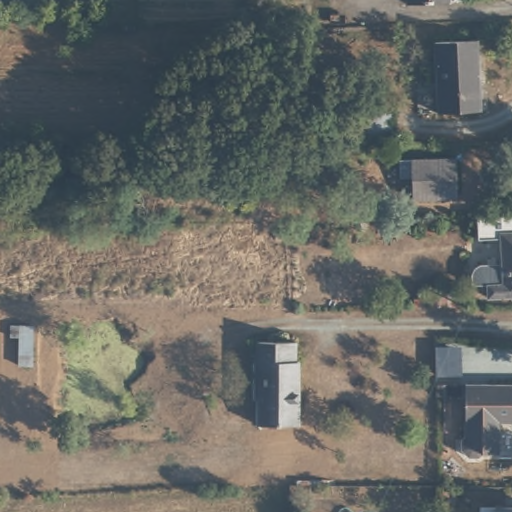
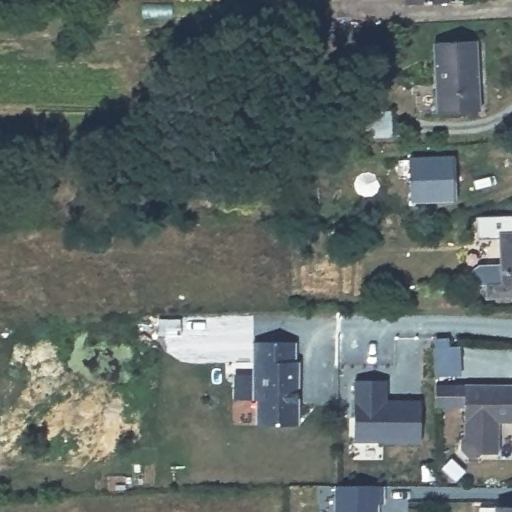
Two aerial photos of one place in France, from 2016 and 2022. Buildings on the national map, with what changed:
unchanged [(452,2),(410,3),(409,0),(452,0),(452,2)]
unchanged [(260,24),(277,24),(276,27),(291,27),(291,33),(260,34),(260,24)]
unchanged [(477,109),(437,111),(434,42),(475,42),(477,109)]
unchanged [(342,140),(342,115),(387,113),(388,138),(342,140)]
unchanged [(288,152),(288,161),(281,161),(281,151),(288,152)]
unchanged [(456,192),(412,194),(412,176),(397,176),(398,158),(457,156),(456,192)]
unchanged [(207,192),(148,193),(146,166),(207,166),(207,192)]
unchanged [(134,193),(122,193),(121,173),(134,173),(134,193)]
unchanged [(492,301),(492,288),(477,288),(477,277),(480,272),(485,269),(507,269),(507,233),(480,233),(478,221),(512,220),(512,300),(492,301)]
unchanged [(295,341),(296,361),(301,362),(300,424),(261,424),(260,397),(256,397),(255,361),(255,341),(295,341)]
new [(389,381),(389,401),(395,401),(423,401),(423,442),(357,442),(357,381),(389,381)]
unchanged [(497,424),(496,455),(479,455),(475,458),(465,457),(458,450),(458,441),(462,436),(462,386),(512,386),(512,424),(497,424)]
unchanged [(512,506),(512,512),(480,512),(481,506),(512,506)]

